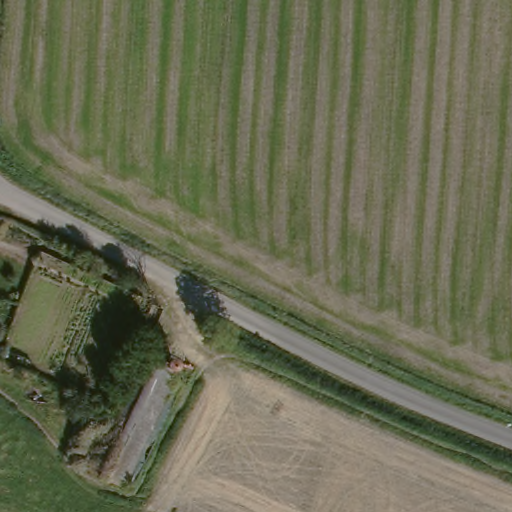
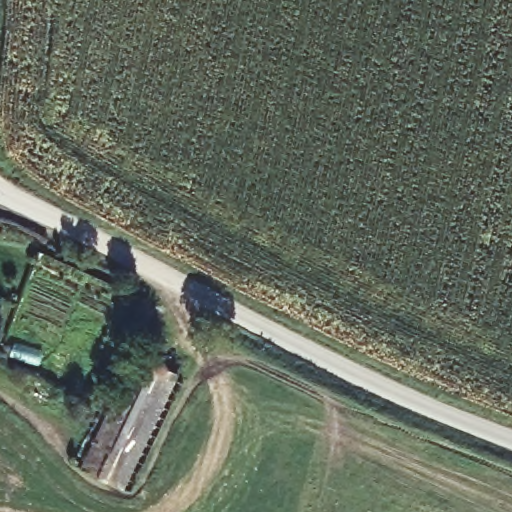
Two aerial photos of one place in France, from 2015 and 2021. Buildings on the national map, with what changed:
unchanged [(184,376),(131,487),(88,466),(136,354),(184,376)]

